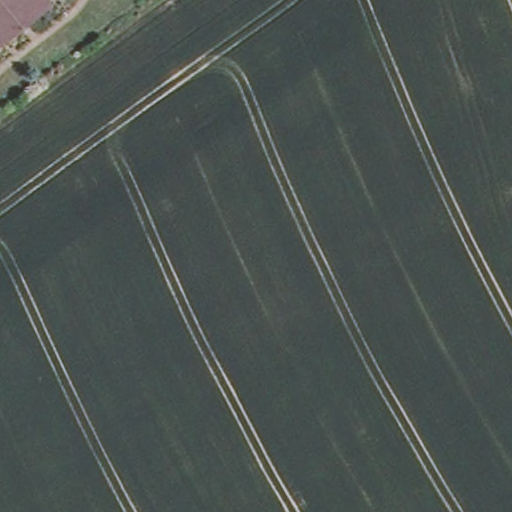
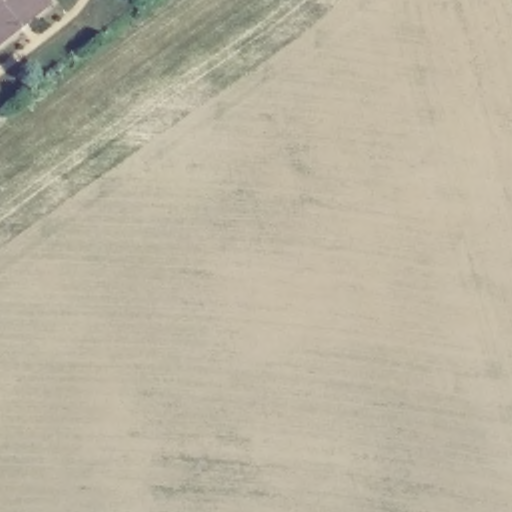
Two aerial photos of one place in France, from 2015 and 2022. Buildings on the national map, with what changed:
unchanged [(0,0),(50,0),(0,41),(0,0)]

